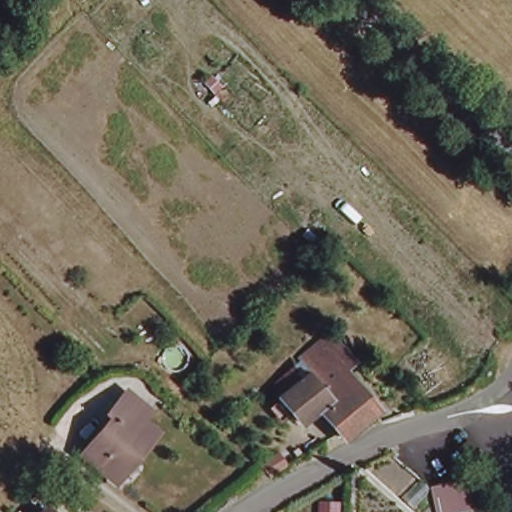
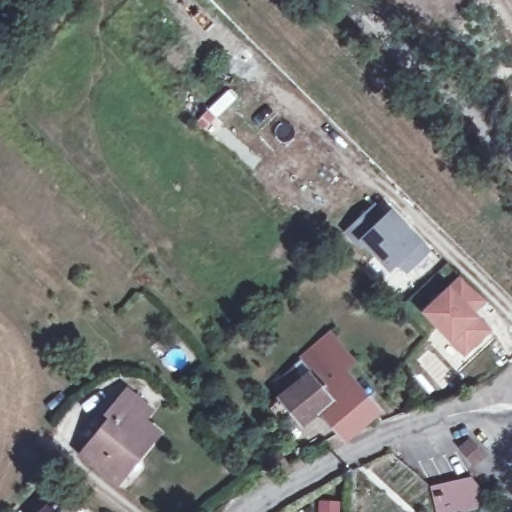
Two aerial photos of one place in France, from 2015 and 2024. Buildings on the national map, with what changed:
new [(373,205),(382,219),(392,209),(423,240),(420,244),(431,251),(405,275),(396,267),(390,273),(362,242),(358,249),(343,234),(373,205)]
new [(448,288),(460,275),(485,301),(475,310),(480,317),(478,318),(492,330),(462,358),(445,340),(445,338),(420,313),(448,288)]
unchanged [(311,388),(307,391),(312,397),(300,407),(282,385),(312,360),(300,346),(328,322),(353,351),(342,361),(375,400),(344,427),(340,422),(311,388)]
unchanged [(107,408),(102,405),(122,381),(147,400),(138,411),(152,423),(143,435),(138,432),(120,455),(123,459),(110,473),(77,446),(107,408)]
unchanged [(290,445),(299,456),(287,463),(290,465),(270,478),(269,477),(258,465),(278,452),(290,445)]
unchanged [(484,507),(461,512),(434,512),(425,486),(467,476),(482,494),(484,507)]
unchanged [(52,512),(45,512),(48,508),(52,512)]

